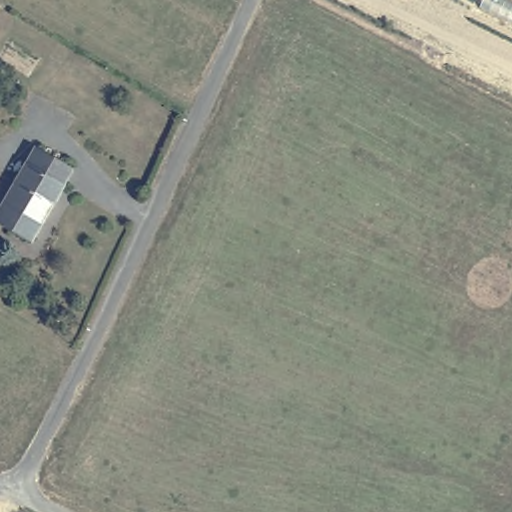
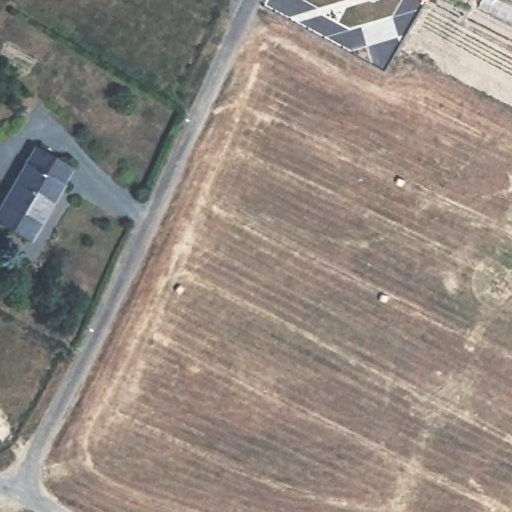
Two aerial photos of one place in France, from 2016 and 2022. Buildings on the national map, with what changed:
unchanged [(0,222),(0,205),(34,148),(71,170),(30,240),(0,222)]

